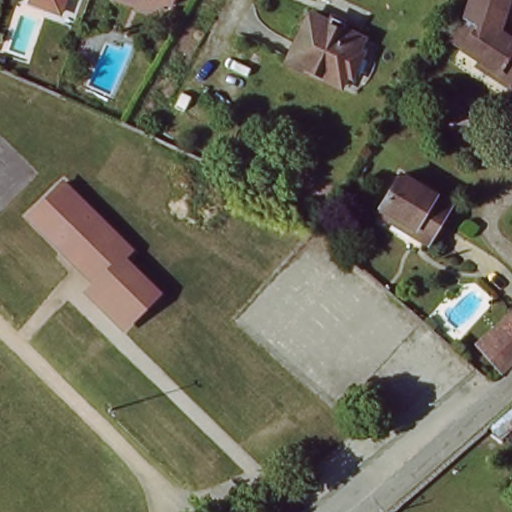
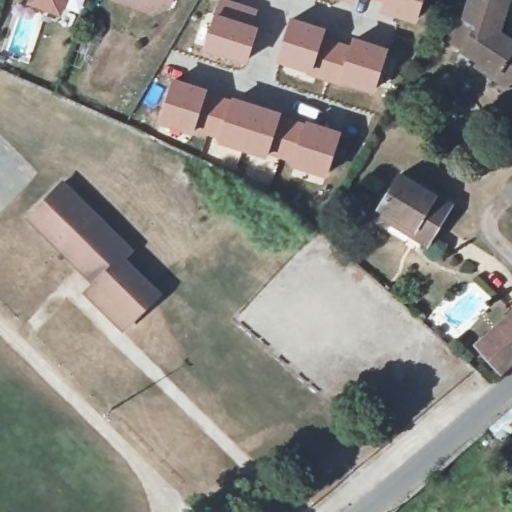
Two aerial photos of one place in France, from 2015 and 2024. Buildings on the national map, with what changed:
unchanged [(62,17),(28,3),(30,0),(67,0),(62,17)]
unchanged [(125,2),(121,0),(152,0),(148,10),(125,2)]
unchanged [(167,2),(161,0),(168,0),(167,2)]
new [(248,62),(204,49),(215,12),(219,0),(232,0),(259,8),(255,23),(259,25),(248,62)]
new [(355,2),(346,0),(356,0),(355,2)]
new [(417,22),(379,11),(382,2),(378,0),(424,0),(417,22)]
unchanged [(495,34),(512,45),(512,92),(490,79),(493,74),(446,46),(471,6),(466,0),(504,0),(495,34)]
unchanged [(357,46),(362,48),(352,71),(347,69),(341,81),(286,56),(308,8),(327,17),(330,9),(347,17),(344,25),(363,32),(357,46)]
new [(173,76),(209,88),(194,134),(159,124),(173,76)]
new [(209,88),(283,111),(272,157),(269,156),(268,158),(213,142),(194,134),(209,88)]
new [(283,111),(341,130),(326,177),(272,157),(283,111)]
unchanged [(380,207),(400,174),(452,205),(428,246),(410,235),(376,216),(380,207)]
unchanged [(65,181),(136,252),(128,259),(163,296),(123,332),(82,292),(92,281),(27,216),(65,181)]
unchanged [(512,364),(505,371),(498,365),(477,343),(512,312),(512,364)]

